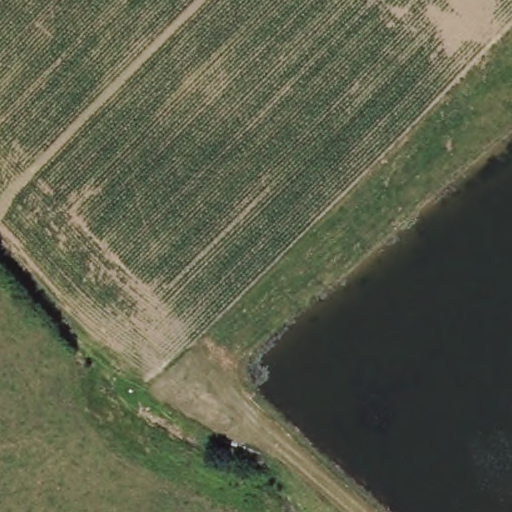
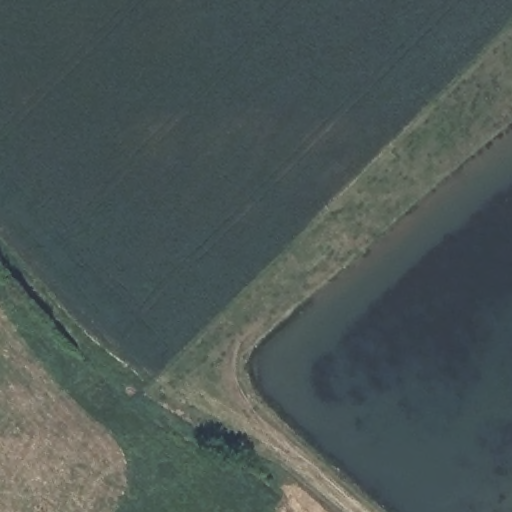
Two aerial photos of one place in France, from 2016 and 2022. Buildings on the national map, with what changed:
[]

